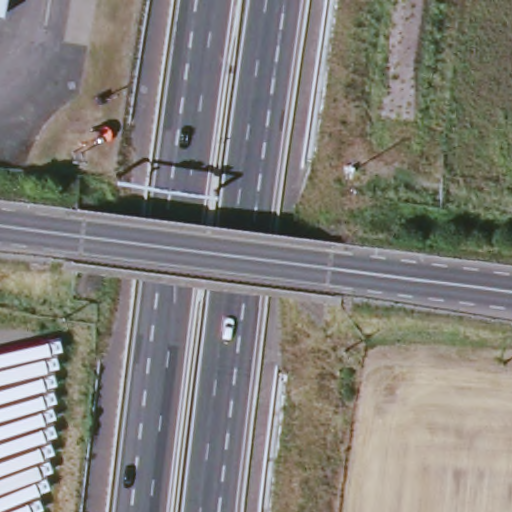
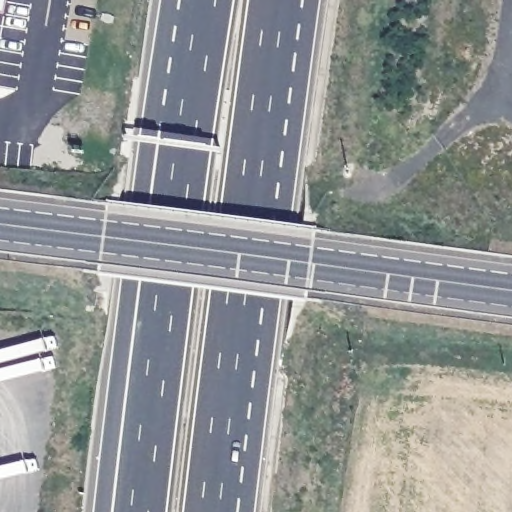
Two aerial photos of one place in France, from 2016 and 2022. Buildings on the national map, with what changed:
unchanged [(7,0),(5,8),(0,7),(0,0),(7,0)]

